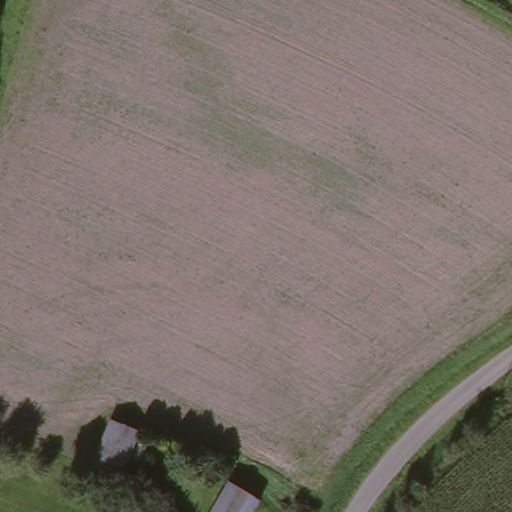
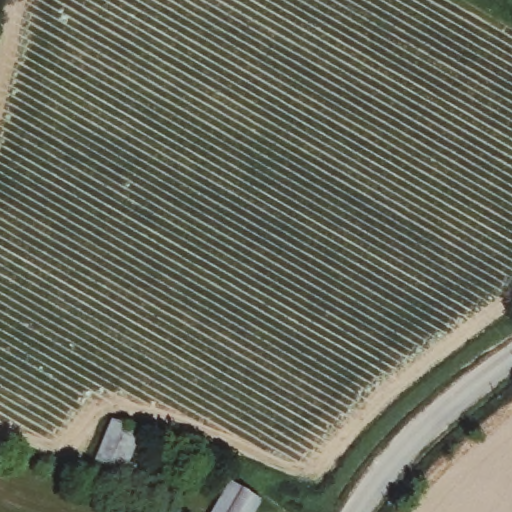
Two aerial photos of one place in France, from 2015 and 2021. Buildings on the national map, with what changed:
unchanged [(122,476),(93,463),(111,420),(140,430),(122,476)]
unchanged [(212,512),(230,481),(261,500),(254,512),(212,512)]

